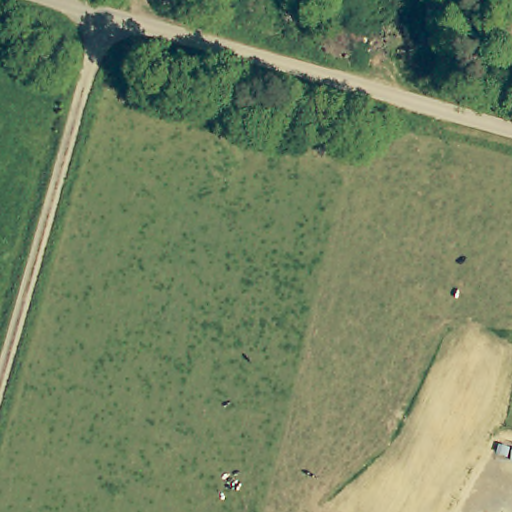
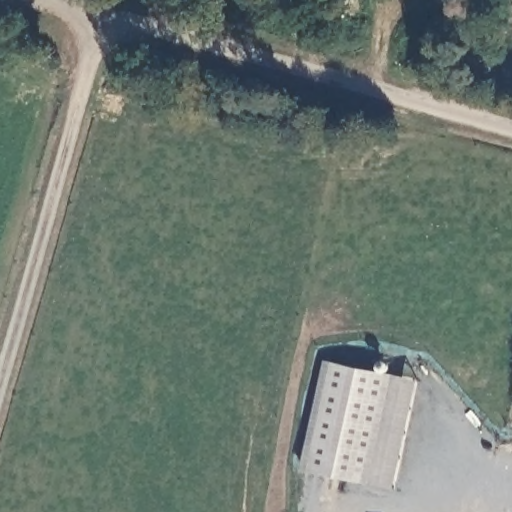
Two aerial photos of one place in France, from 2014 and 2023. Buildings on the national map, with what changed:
new [(301,469),(324,358),(417,379),(394,488),(301,469)]

